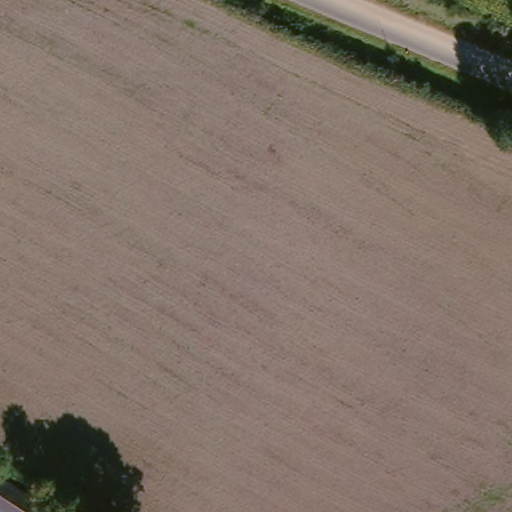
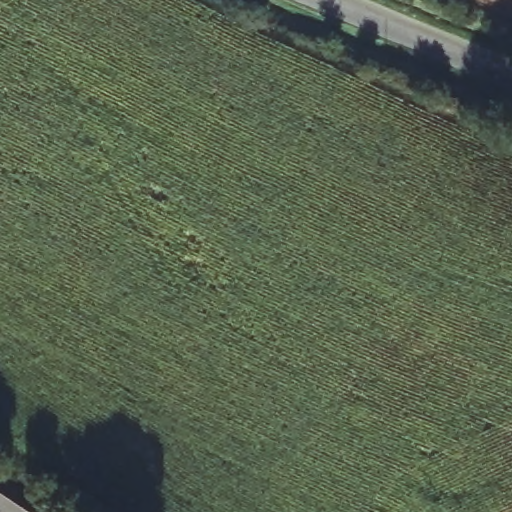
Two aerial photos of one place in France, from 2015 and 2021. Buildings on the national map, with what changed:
unchanged [(35,512),(0,512),(0,479),(40,506),(35,512)]

